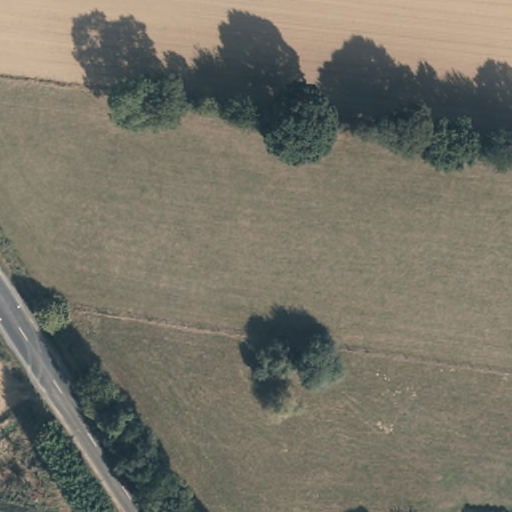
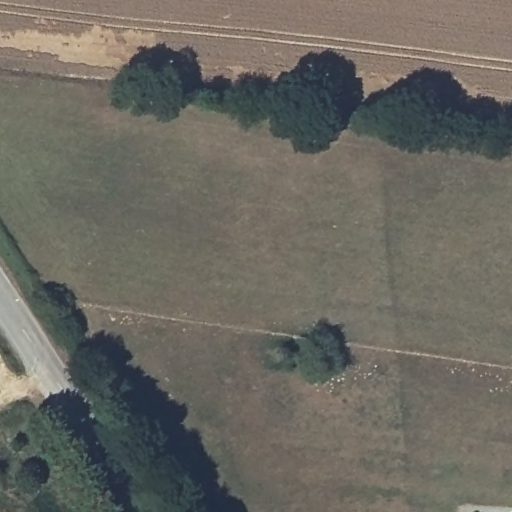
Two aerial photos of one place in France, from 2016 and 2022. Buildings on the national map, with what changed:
[]

